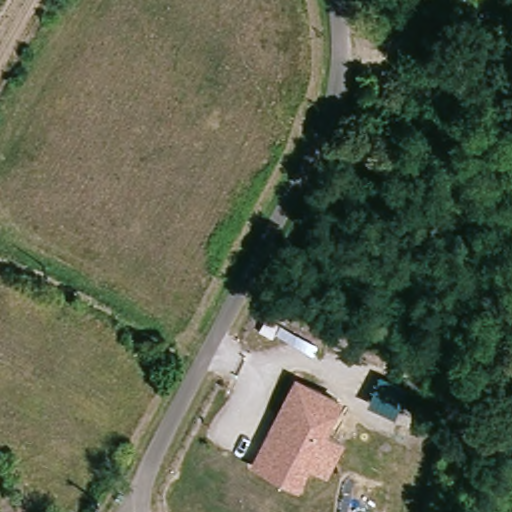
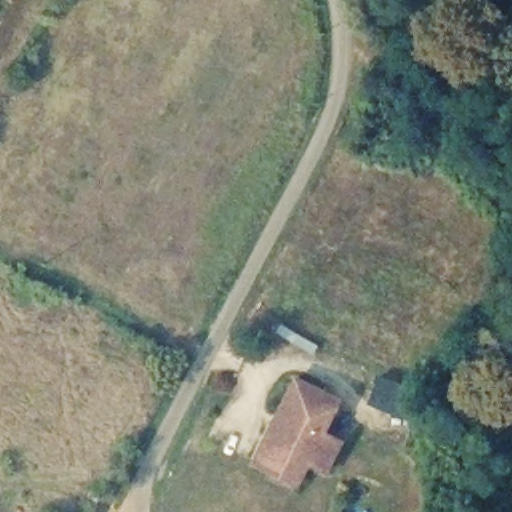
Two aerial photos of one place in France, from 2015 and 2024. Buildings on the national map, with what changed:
unchanged [(325,433),(342,442),(325,476),(306,467),(296,487),(249,465),(293,375),(340,399),(325,433)]

